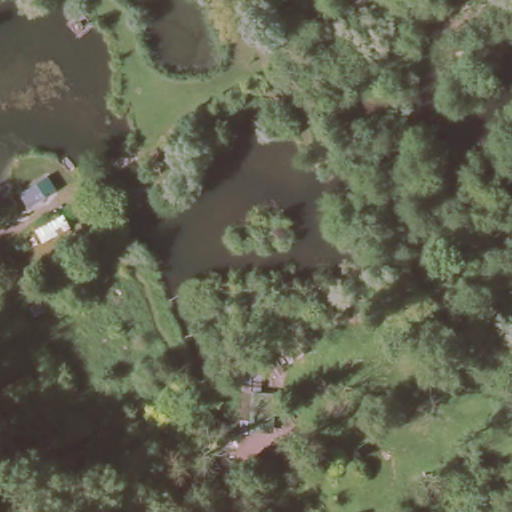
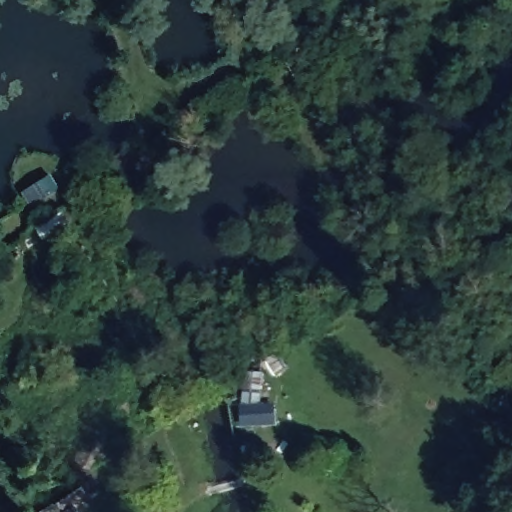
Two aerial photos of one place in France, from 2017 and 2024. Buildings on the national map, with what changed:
unchanged [(162,145),(107,182),(98,168),(153,131),(162,145)]
unchanged [(43,245),(29,250),(26,242),(37,236),(33,227),(64,210),(74,228),(43,245)]
unchanged [(274,382),(278,428),(287,427),(288,443),(251,445),(246,382),(274,382)]

